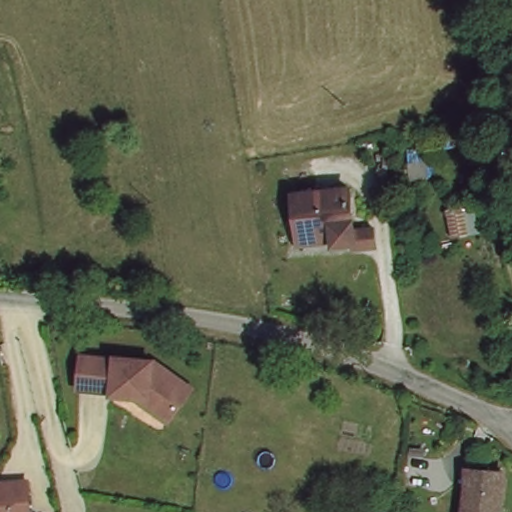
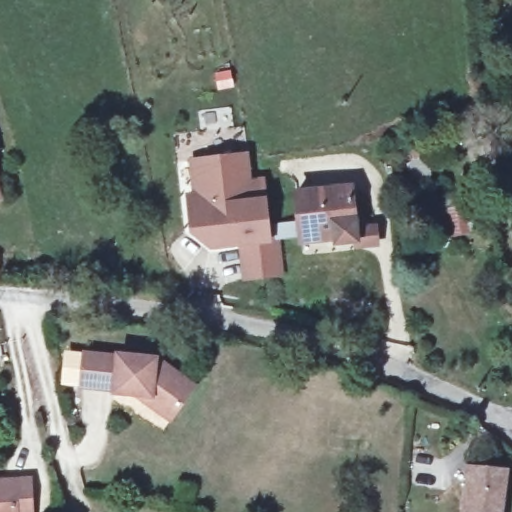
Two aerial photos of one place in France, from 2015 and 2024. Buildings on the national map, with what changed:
new [(302,237),(278,240),(283,275),(240,281),(237,247),(211,250),(191,234),(185,195),(192,193),(187,158),(248,152),(252,178),(264,177),(272,224),(299,222),(302,237)]
unchanged [(6,174),(11,194),(0,197),(0,176),(6,174)]
unchanged [(364,249),(341,253),(340,243),(305,249),(294,198),(352,187),(357,211),(351,212),(354,224),(360,223),(361,228),(379,224),(383,245),(364,249)]
unchanged [(147,386),(109,381),(110,378),(77,374),(81,341),(114,345),(115,343),(153,348),(190,377),(170,403),(165,409),(142,392),(147,386)]
unchanged [(460,411),(470,416),(467,427),(454,421),(457,410),(460,411)]
unchanged [(498,512),(464,512),(469,461),(503,466),(498,512)]
unchanged [(27,473),(30,511),(16,512),(0,512),(0,475),(27,473)]

